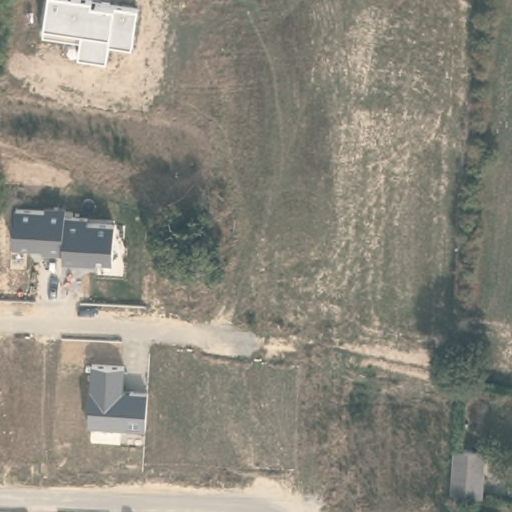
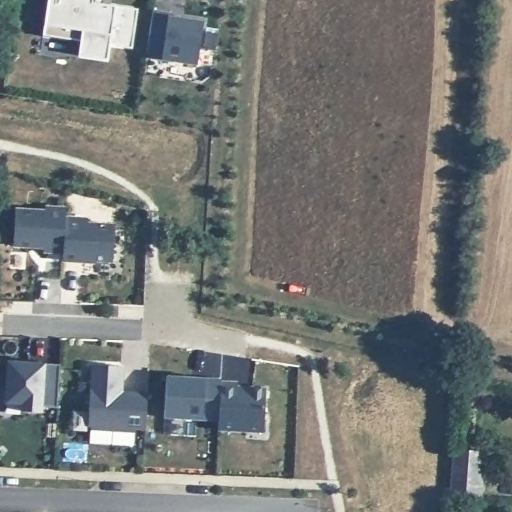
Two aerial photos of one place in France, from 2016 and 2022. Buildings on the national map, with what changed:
unchanged [(105,59),(79,55),(80,42),(40,37),(44,24),(48,0),(91,0),(91,4),(113,5),(136,8),(130,47),(106,44),(105,59)]
new [(153,9),(170,11),(169,15),(203,20),(197,64),(146,56),(153,9)]
unchanged [(94,265),(63,264),(65,253),(41,253),(41,248),(10,247),(12,208),(43,209),(44,203),(65,204),(65,214),(90,216),(91,223),(116,223),(113,261),(95,260),(94,265)]
unchanged [(21,413),(21,404),(4,403),(5,361),(62,364),(59,407),(44,406),(42,413),(21,413)]
unchanged [(89,429),(93,366),(123,367),(121,391),(142,390),(144,430),(89,429)]
new [(216,431),(216,419),(202,419),(163,417),(165,377),(202,378),(219,379),(219,382),(236,383),(236,387),(266,389),(264,432),(216,431)]
unchanged [(488,449),(485,493),(455,491),(457,447),(488,449)]

